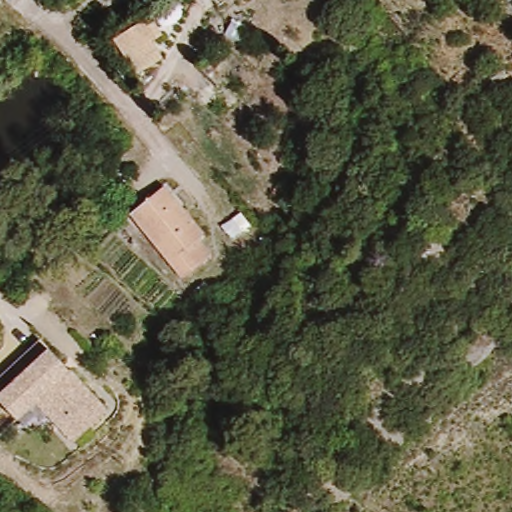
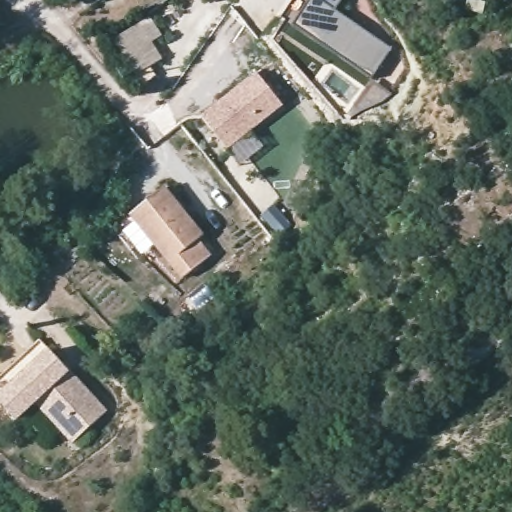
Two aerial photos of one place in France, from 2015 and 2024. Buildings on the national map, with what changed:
new [(302,0),(335,0),(392,35),(373,66),(292,17),(302,0)]
unchanged [(163,59),(133,75),(114,42),(146,25),(163,59)]
new [(285,102),(230,148),(204,117),(260,71),(285,102)]
new [(262,148),(242,164),(230,148),(249,132),(262,148)]
unchanged [(167,182),(205,230),(200,235),(212,250),(184,273),(133,211),(167,182)]
unchanged [(205,278),(217,295),(206,303),(193,287),(205,278)]
unchanged [(42,341),(52,352),(0,400),(0,380),(42,341)]
unchanged [(108,414),(75,444),(38,403),(18,421),(0,402),(0,400),(52,352),(108,414)]

